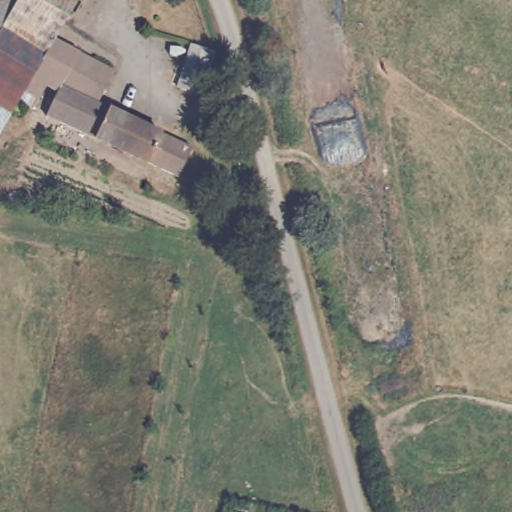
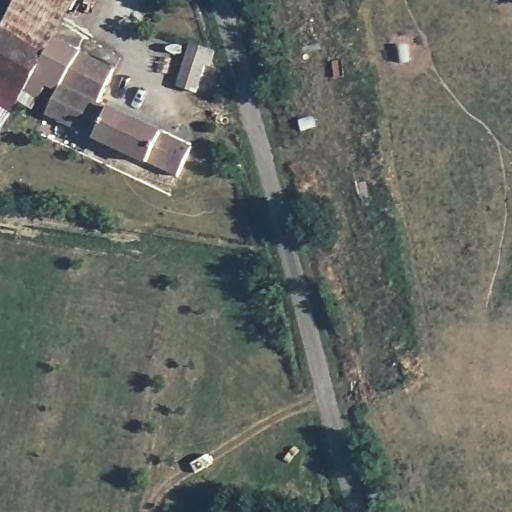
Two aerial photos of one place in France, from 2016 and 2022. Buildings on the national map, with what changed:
unchanged [(55,37),(34,73),(31,72),(24,85),(0,73),(0,0),(76,0),(55,37)]
unchanged [(125,149),(119,146),(85,129),(46,110),(57,85),(47,80),(40,93),(24,85),(31,72),(34,73),(55,37),(116,69),(100,101),(131,117),(139,120),(162,132),(192,145),(178,174),(149,160),(125,149)]
unchanged [(197,93),(177,86),(191,44),(211,50),(197,93)]
unchanged [(0,126),(0,73),(24,85),(0,126)]

